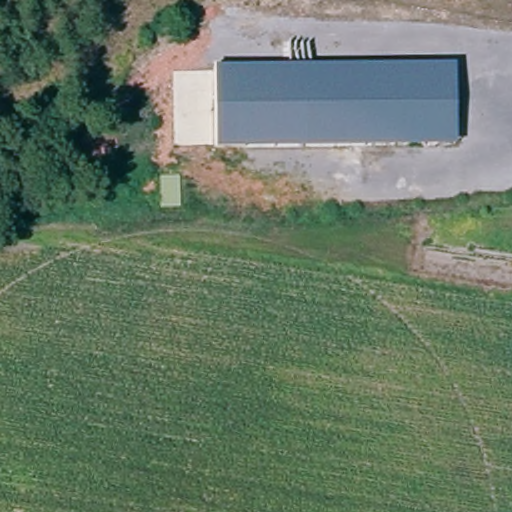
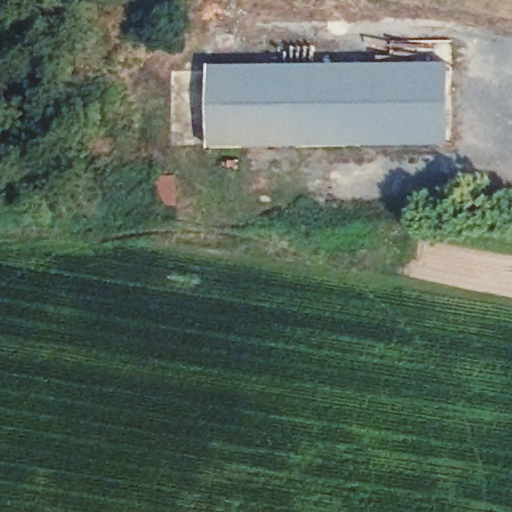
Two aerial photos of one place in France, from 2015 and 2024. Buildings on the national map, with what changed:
unchanged [(456,65),(456,148),(215,151),(215,66),(456,65)]

